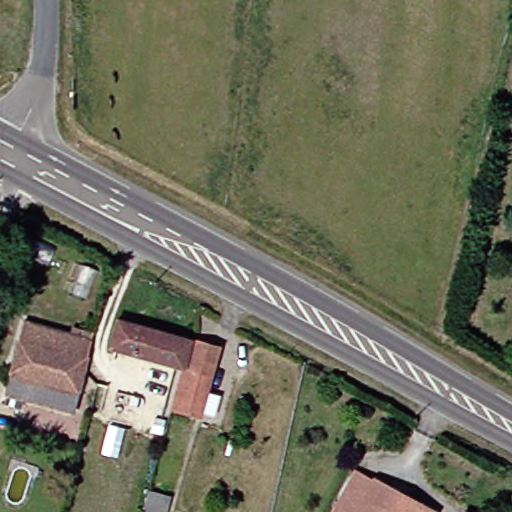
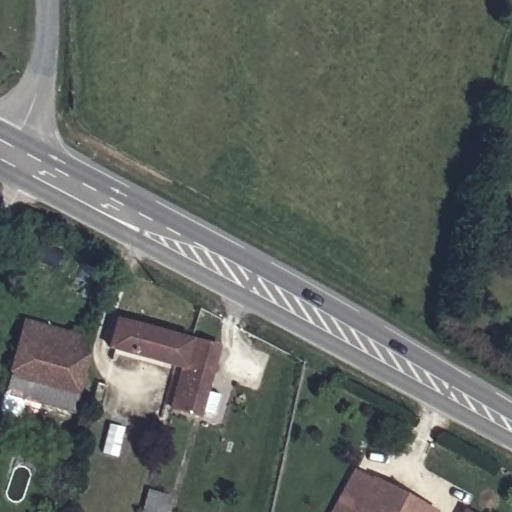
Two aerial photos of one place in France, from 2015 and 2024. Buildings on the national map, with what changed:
unchanged [(55,383),(76,387),(71,412),(6,397),(10,375),(5,371),(16,321),(66,333),(55,383)]
unchanged [(177,368),(104,348),(111,321),(184,341),(177,368)]
unchanged [(87,338),(76,387),(55,383),(66,333),(87,338)]
unchanged [(201,393),(214,397),(210,416),(197,413),(196,416),(173,409),(182,370),(177,368),(184,341),(212,348),(201,393)]
unchanged [(431,512),(355,512),(372,480),(431,512)]
unchanged [(149,496),(170,500),(167,512),(145,512),(149,496)]
unchanged [(463,508),(470,512),(461,512),(463,508)]

